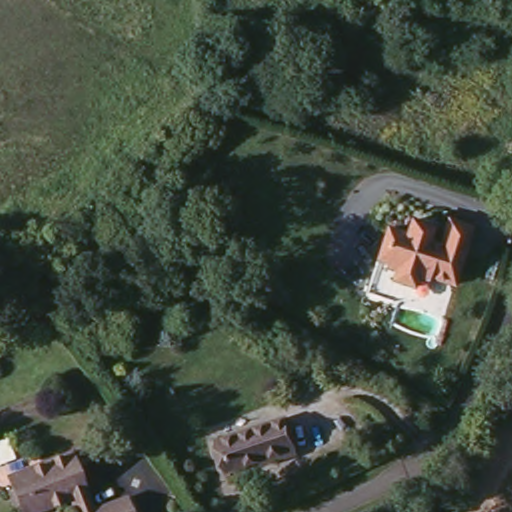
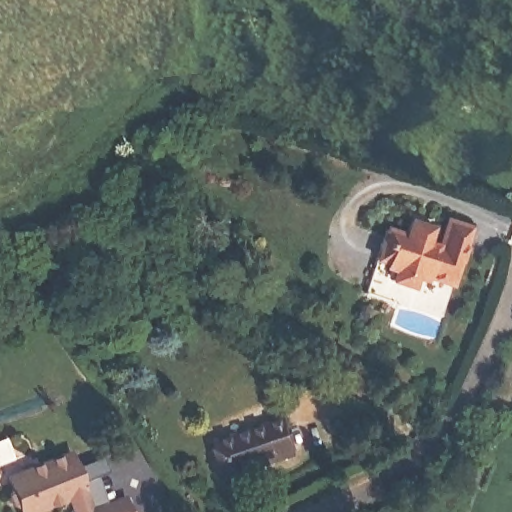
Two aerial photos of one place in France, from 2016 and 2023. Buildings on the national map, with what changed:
unchanged [(407,231),(410,217),(442,224),(444,215),(477,224),(457,287),(429,279),(427,285),(416,283),(413,292),(389,283),(390,272),(385,268),(377,257),(386,227),(407,231)]
unchanged [(284,413),(295,442),(293,443),(296,449),(272,459),(270,452),(227,470),(216,441),(284,413)]
unchanged [(72,447),(94,508),(125,497),(131,512),(64,512),(62,504),(38,512),(20,512),(7,471),(72,447)]

